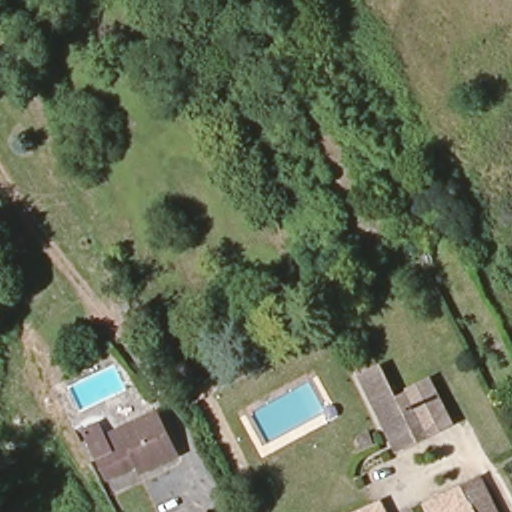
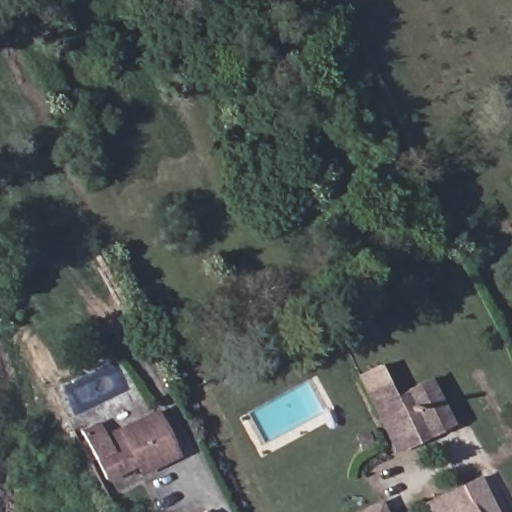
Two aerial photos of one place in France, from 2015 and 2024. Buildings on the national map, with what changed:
unchanged [(305,265),(310,274),(298,280),(294,271),(305,265)]
unchanged [(277,279),(282,288),(270,293),(266,285),(277,279)]
unchanged [(251,292),(255,301),(243,306),(238,298),(251,292)]
unchanged [(222,306),(227,314),(215,320),(210,312),(222,306)]
unchanged [(365,306),(381,339),(374,343),(357,310),(365,306)]
unchanged [(190,332),(185,324),(195,320),(199,328),(190,332)]
unchanged [(364,372),(386,361),(401,391),(413,386),(435,432),(402,448),(364,372)]
unchanged [(435,375),(457,421),(435,432),(413,386),(435,375)]
unchanged [(174,385),(185,379),(191,387),(178,394),(174,385)]
unchanged [(141,468),(115,482),(104,460),(117,453),(110,440),(161,416),(168,427),(183,456),(144,475),(141,468)]
unchanged [(490,480),(504,512),(435,512),(431,505),(490,480)]
unchanged [(385,512),(367,512),(382,505),(385,512)]

